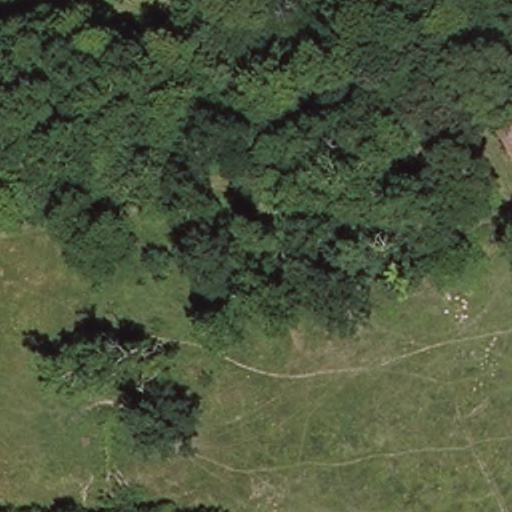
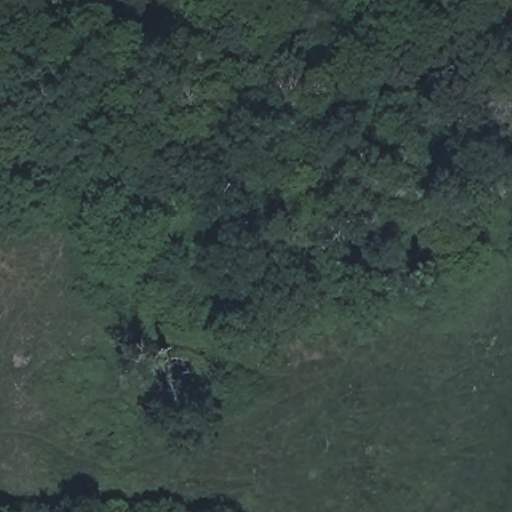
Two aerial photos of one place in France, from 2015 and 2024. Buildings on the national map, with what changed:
unchanged [(512,130),(512,135),(510,131),(512,130)]

